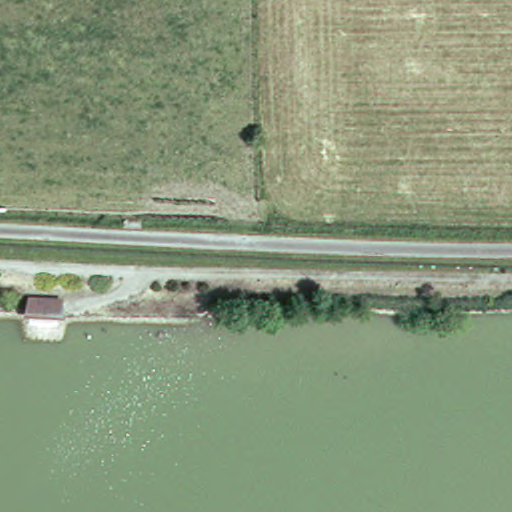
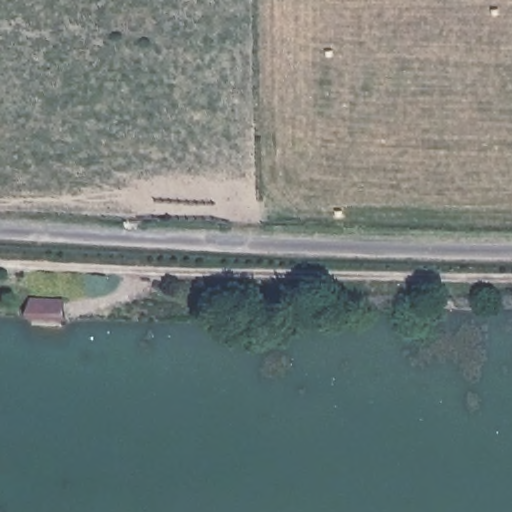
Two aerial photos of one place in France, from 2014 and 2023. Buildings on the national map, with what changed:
unchanged [(60,318),(28,316),(28,300),(60,301),(60,318)]

